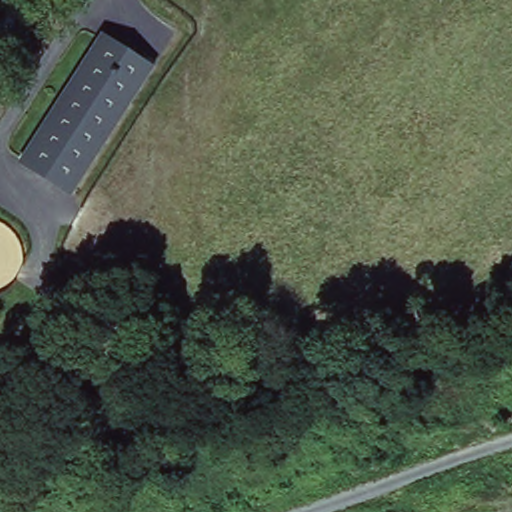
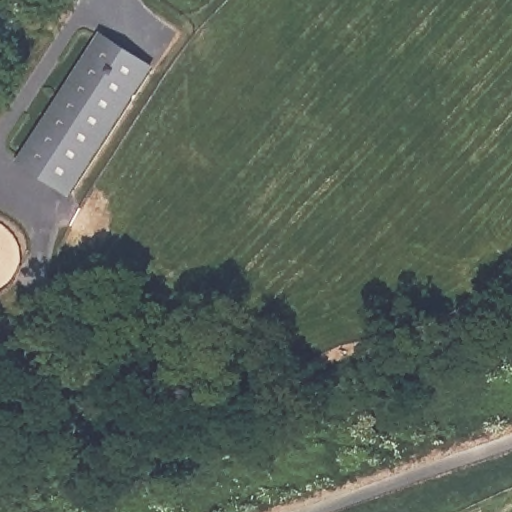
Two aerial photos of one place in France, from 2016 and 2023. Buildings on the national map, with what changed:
unchanged [(69,197),(16,163),(102,29),(156,66),(69,197)]

